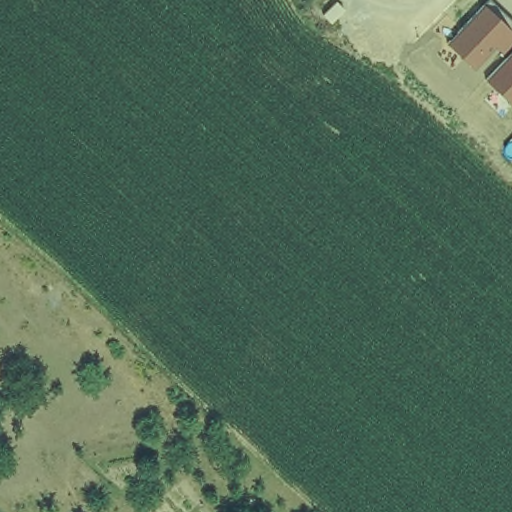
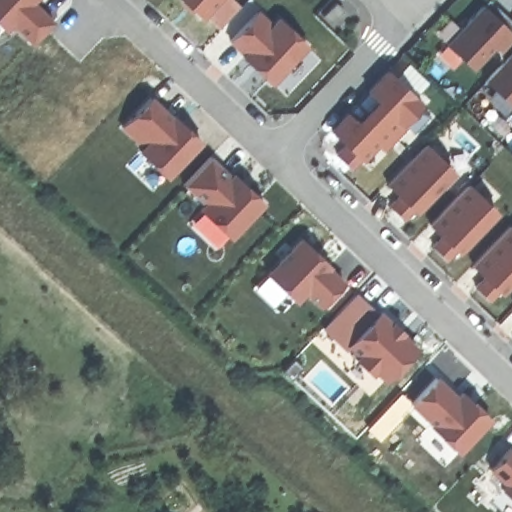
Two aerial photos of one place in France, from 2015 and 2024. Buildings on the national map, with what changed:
new [(40,0),(36,4),(55,24),(34,44),(16,27),(9,34),(0,24),(0,0),(40,0)]
new [(218,25),(204,11),(201,15),(185,0),(235,0),(239,4),(218,25)]
new [(336,0),(343,7),(329,20),(321,13),(334,0),(336,0)]
unchanged [(512,27),(509,30),(512,34),(512,42),(501,54),(494,48),(474,69),(446,43),(488,0),(489,0),(512,21),(512,27)]
new [(261,11),(276,25),(283,18),(313,46),(274,84),(233,41),(261,11)]
unchanged [(512,51),(512,104),(486,79),(512,51)]
new [(426,106),(407,126),(410,129),(387,153),(381,148),(366,163),(364,160),(354,169),(339,154),(348,144),(334,134),(351,113),(361,123),(383,101),(371,90),(391,71),(426,106)]
new [(202,145),(171,179),(144,152),(147,149),(124,128),(153,98),(202,145)]
new [(461,173),(421,214),(417,209),(408,218),(394,207),(405,195),(392,183),(429,144),(461,173)]
new [(209,153),(230,173),(232,172),(262,200),(229,235),(199,206),(203,202),(181,182),(209,153)]
new [(503,215),(463,256),(459,252),(449,260),(436,249),(447,238),(434,225),(472,186),(503,215)]
new [(502,292),(493,300),(479,289),(490,278),(477,265),(512,228),(512,289),(506,295),(502,292)]
new [(299,236),(329,264),(327,265),(342,279),(319,304),(304,289),(294,299),(266,271),(299,236)]
new [(321,325),(354,290),(376,310),(377,309),(390,321),(391,319),(401,329),(400,330),(414,345),(384,378),(373,368),(369,371),(349,353),(343,346),(321,325)]
new [(429,423),(431,421),(410,401),(434,375),(456,396),(461,390),(488,417),(457,449),(429,423)]
new [(505,482),(489,467),(509,444),(512,447),(512,498),(500,487),(505,482)]

